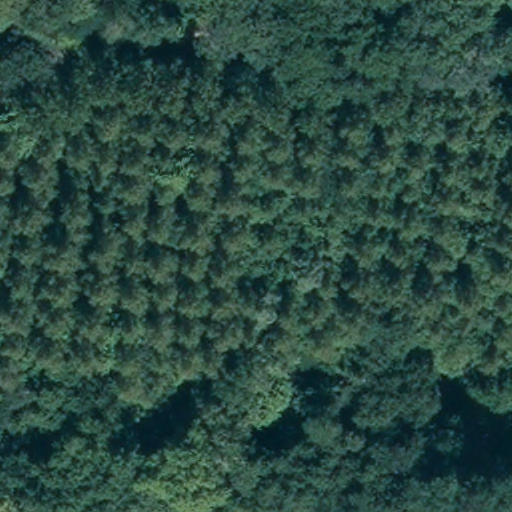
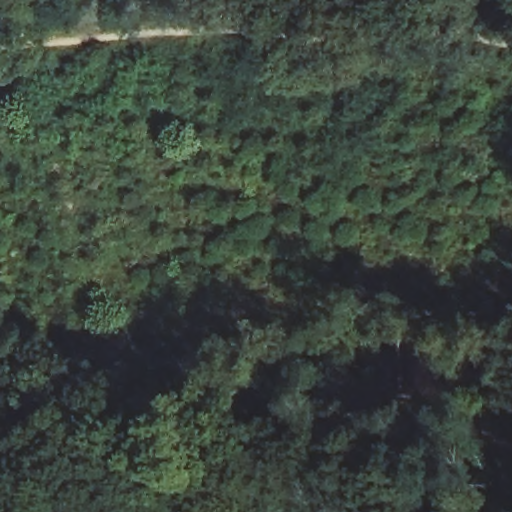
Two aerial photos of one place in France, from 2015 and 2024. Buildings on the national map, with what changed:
[]

